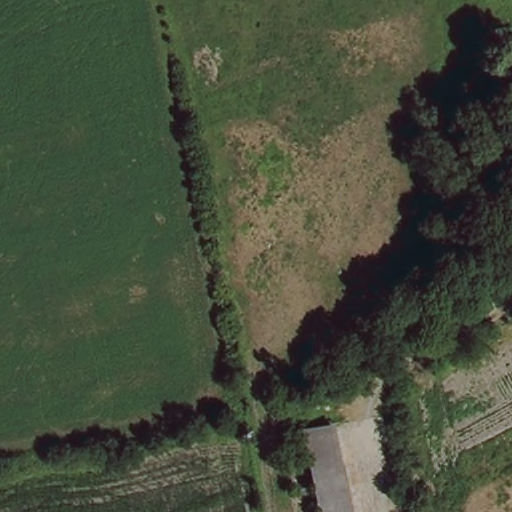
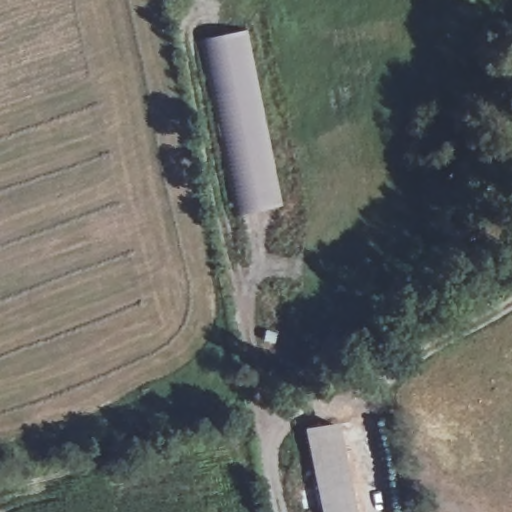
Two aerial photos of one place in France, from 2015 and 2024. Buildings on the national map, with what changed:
new [(236,216),(198,41),(247,31),(283,205),(236,216)]
unchanged [(313,475),(312,469),(303,430),(335,423),(344,463),(345,469),(354,512),(321,512),(313,475)]

